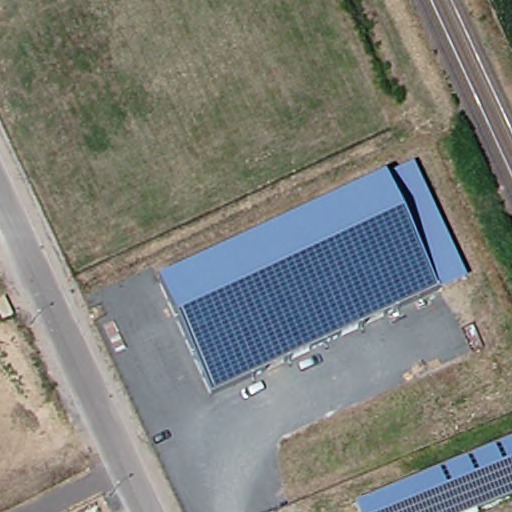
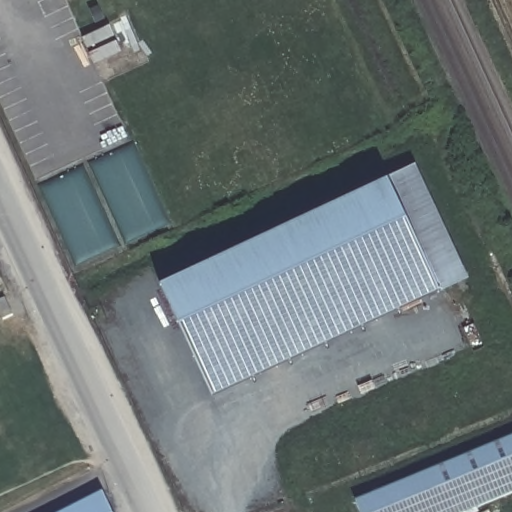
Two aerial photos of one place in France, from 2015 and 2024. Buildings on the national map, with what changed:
unchanged [(208,385),(160,275),(416,156),(480,273),(435,292),(210,390),(208,385)]
unchanged [(512,440),(512,494),(467,512),(355,512),(352,505),(512,440)]
new [(100,493),(109,512),(61,512),(100,493)]

